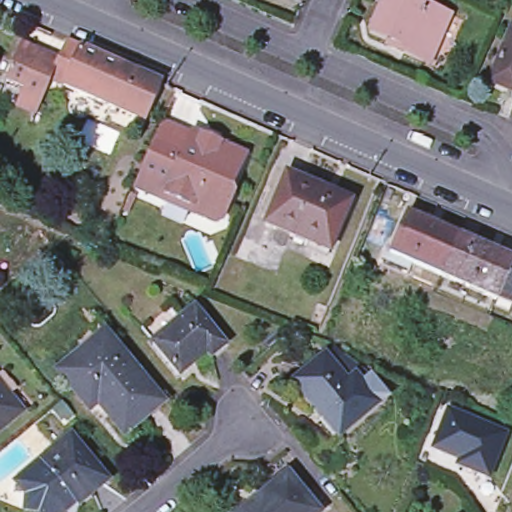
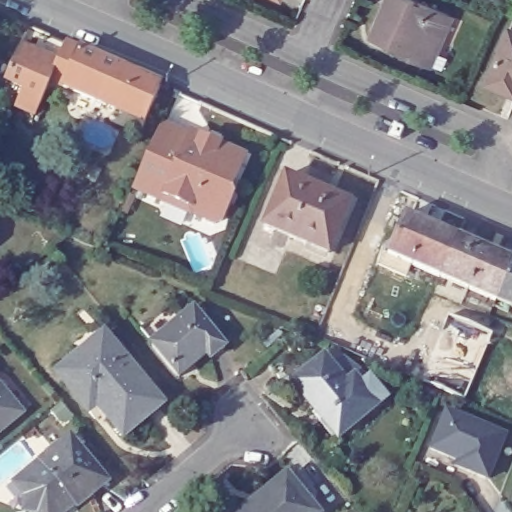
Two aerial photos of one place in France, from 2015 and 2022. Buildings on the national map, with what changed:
unchanged [(411,0),(451,17),(435,53),(432,51),(427,64),(405,56),(407,51),(369,35),(383,0),(411,0)]
unchanged [(505,92),(502,97),(482,88),(506,32),(512,18),(512,95),(505,92)]
unchanged [(145,122),(50,82),(67,44),(161,85),(145,122)]
unchanged [(15,106),(23,89),(5,81),(21,45),(41,54),(30,80),(48,87),(35,115),(15,106)]
unchanged [(230,190),(233,197),(222,223),(213,225),(192,216),(190,210),(164,198),(162,202),(131,189),(160,124),(190,137),(192,132),(200,137),(219,145),(245,157),(230,190)]
unchanged [(6,169),(0,170),(0,156),(5,156),(6,169)]
unchanged [(350,202),(329,252),(265,227),(286,176),(350,202)]
unchanged [(411,216),(462,237),(445,277),(417,265),(414,272),(387,261),(390,253),(395,255),(411,216)]
unchanged [(462,237),(512,259),(512,282),(503,302),(445,277),(462,237)]
unchanged [(503,302),(512,282),(512,306),(503,302)]
unchanged [(184,380),(182,381),(145,337),(174,313),(182,323),(197,312),(227,350),(213,362),(210,358),(200,366),(197,361),(180,375),(184,380)]
unchanged [(77,353),(84,361),(108,342),(160,404),(122,436),(102,411),(93,418),(55,372),(77,353)]
unchanged [(332,446),(288,392),(319,367),(330,357),(367,386),(364,388),(380,408),(332,446)]
unchanged [(0,388),(6,395),(9,392),(26,412),(0,434),(0,388)]
unchanged [(467,463),(432,450),(447,411),(482,426),(467,463)]
unchanged [(69,512),(35,512),(27,511),(30,496),(18,482),(27,476),(31,472),(73,437),(112,482),(82,507),(79,503),(72,510),(69,512)]
unchanged [(291,481),(316,512),(252,512),(291,481)]

